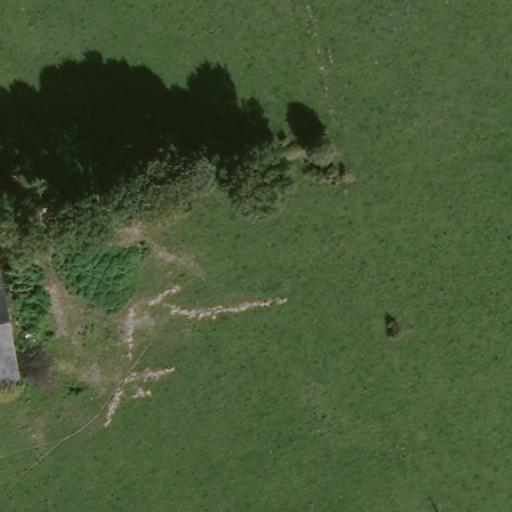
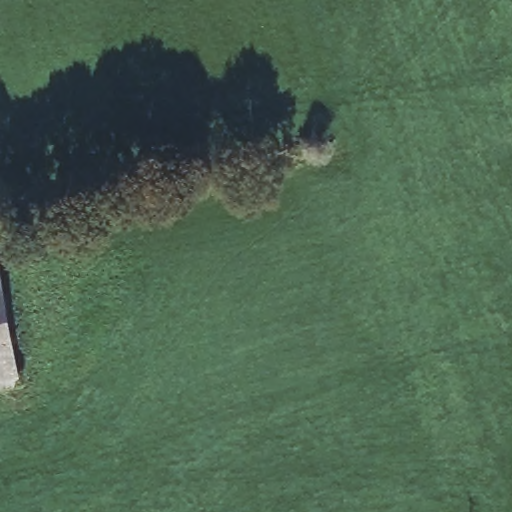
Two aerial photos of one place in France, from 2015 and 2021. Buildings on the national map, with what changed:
unchanged [(10,330),(0,333),(0,290),(10,330)]
unchanged [(25,387),(0,394),(0,333),(10,330),(25,387)]

